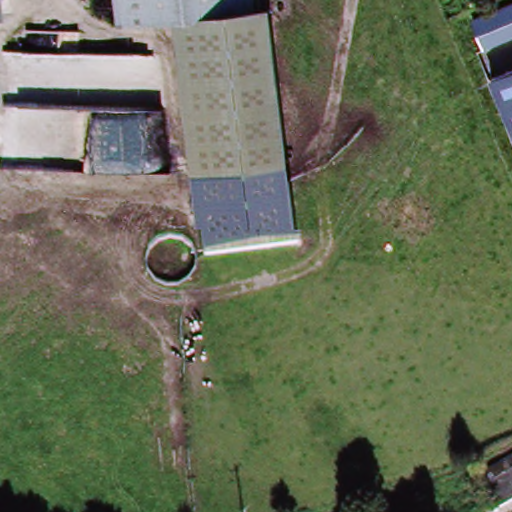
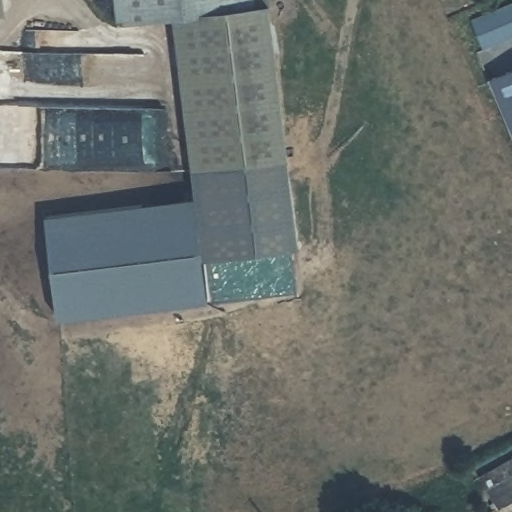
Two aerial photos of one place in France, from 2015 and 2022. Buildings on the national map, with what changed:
unchanged [(0,10),(0,0),(1,9),(0,10)]
unchanged [(255,9),(181,20),(126,29),(123,8),(122,0),(253,0),(255,9)]
unchanged [(482,49),(469,22),(512,3),(512,36),(482,49)]
unchanged [(275,6),(277,16),(303,235),(203,248),(181,20),(255,9),(275,6)]
demolished [(131,108),(50,106),(53,54),(131,59),(131,108)]
unchanged [(500,76),(512,70),(512,104),(500,76)]
new [(203,262),(207,305),(58,323),(48,221),(197,203),(203,262)]
unchanged [(512,480),(512,481),(512,496),(491,507),(475,471),(508,456),(512,464),(512,480)]

